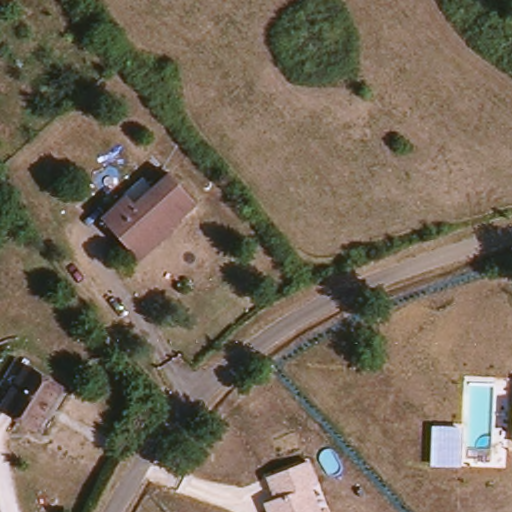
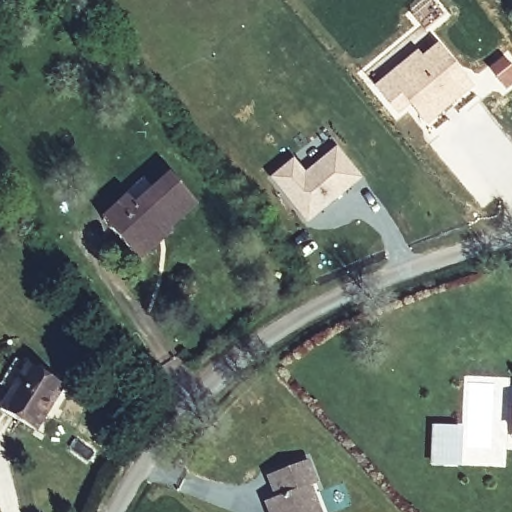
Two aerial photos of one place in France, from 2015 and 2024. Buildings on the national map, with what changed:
new [(417,49),(422,55),(439,41),(474,84),(427,125),(400,97),(389,106),(373,86),(417,49)]
new [(512,60),(512,86),(507,91),(487,67),(505,52),(512,60)]
new [(305,172),(338,146),(364,179),(308,224),(269,178),(294,158),(305,172)]
unchanged [(137,256),(128,244),(103,214),(130,194),(137,202),(174,172),(198,202),(170,225),(173,228),(137,256)]
unchanged [(34,430),(0,405),(0,396),(17,371),(23,362),(62,388),(51,410),(34,430)]
unchanged [(269,475),(314,457),(321,481),(314,485),(324,512),(269,512),(265,502),(277,499),(269,475)]

